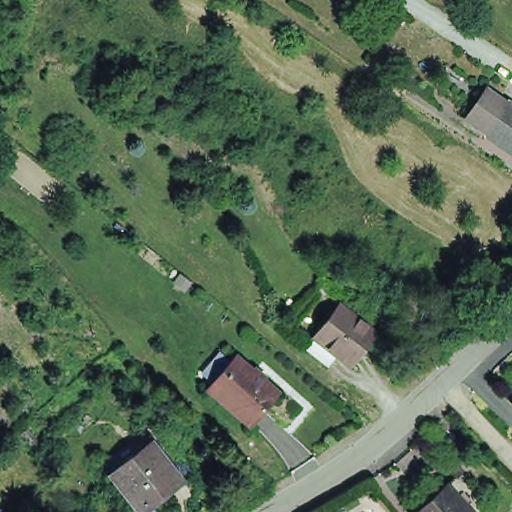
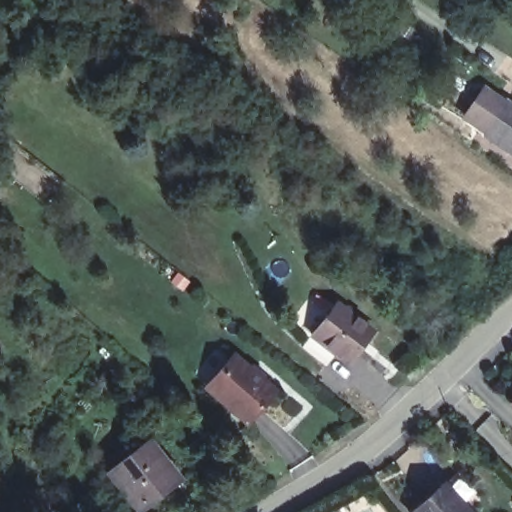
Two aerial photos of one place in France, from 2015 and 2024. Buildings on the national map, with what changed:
unchanged [(454,112),(478,79),(493,88),(496,84),(503,89),(500,94),(497,95),(475,126),(454,112)]
unchanged [(512,151),(475,126),(497,95),(500,94),(512,102),(512,151)]
unchanged [(299,345),(309,332),(334,300),(372,328),(347,361),(334,351),(324,364),(299,345)]
unchanged [(234,352),(273,386),(246,417),(208,383),(234,352)]
unchanged [(512,407),(508,403),(512,399),(512,407)]
unchanged [(148,440),(176,477),(136,508),(106,471),(148,440)]
unchanged [(484,492),(471,505),(476,512),(415,512),(411,507),(459,464),(484,492)]

